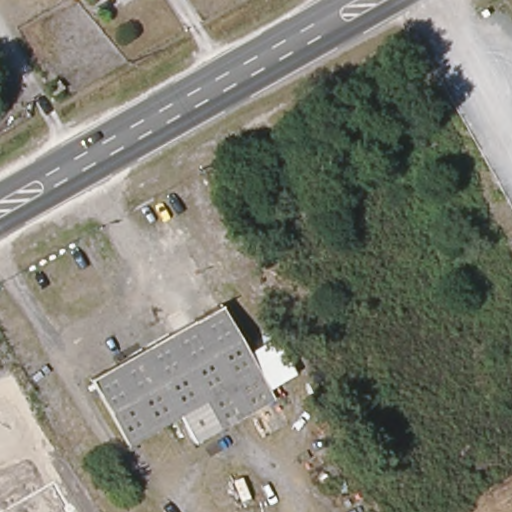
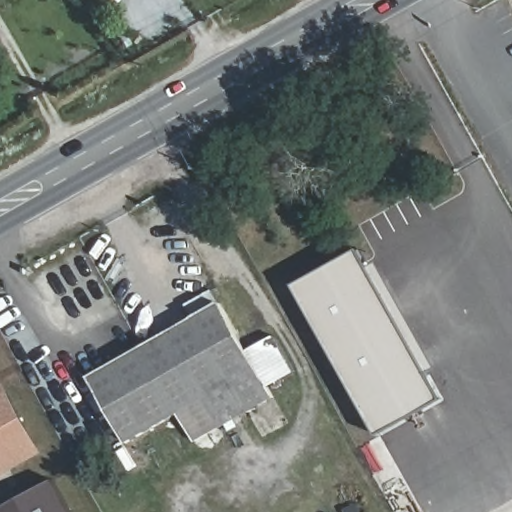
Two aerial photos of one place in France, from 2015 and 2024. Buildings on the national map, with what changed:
new [(369,270),(379,264),(440,370),(430,376),(441,396),(436,396),(440,403),(381,436),(297,288),(360,252),(369,270)]
unchanged [(178,412),(130,440),(93,377),(221,305),(257,367),(205,397),(178,412)]
unchanged [(257,367),(273,393),(195,439),(178,412),(205,397),(257,367)]
new [(0,477),(0,386),(3,384),(43,453),(0,477)]
new [(55,481),(73,512),(2,512),(55,481)]

